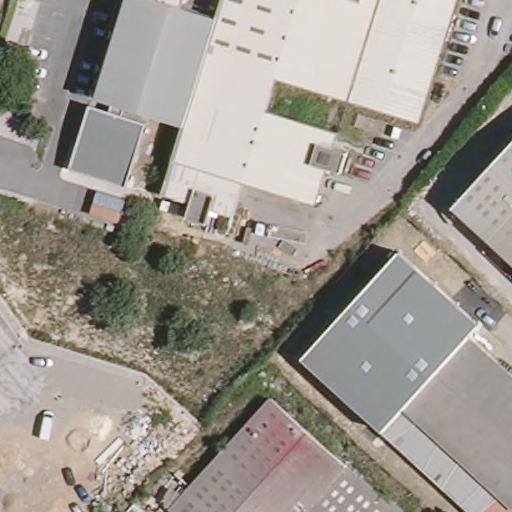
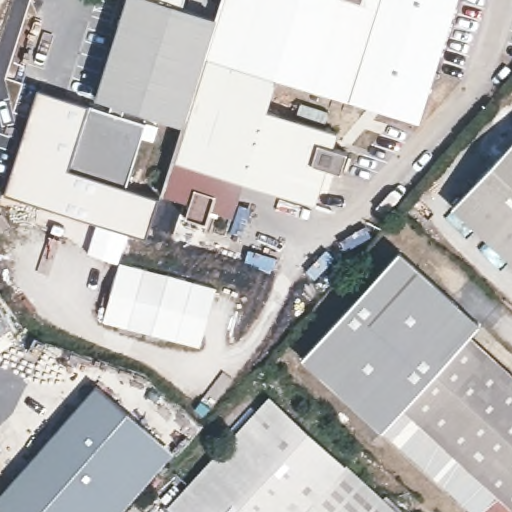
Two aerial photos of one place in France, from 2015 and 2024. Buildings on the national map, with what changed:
unchanged [(100,95),(130,0),(187,0),(224,11),(189,123),(100,95)]
unchanged [(189,123),(224,11),(227,0),(461,0),(425,115),(283,72),(273,105),(343,126),(339,142),(353,148),(347,167),(332,162),(320,199),(249,177),(238,211),(216,204),(210,220),(192,213),(197,198),(168,189),(189,123)]
new [(42,206),(4,195),(37,89),(88,106),(69,171),(127,188),(159,198),(145,238),(127,233),(117,263),(88,253),(97,223),(42,206)]
unchanged [(126,103),(123,118),(145,124),(127,188),(69,171),(88,106),(109,112),(113,99),(126,103)]
unchanged [(512,140),(512,272),(448,211),(512,140)]
unchanged [(382,425),(377,430),(301,359),(399,250),(478,323),(471,331),(382,425)]
new [(217,288),(201,347),(104,322),(120,262),(217,288)]
unchanged [(471,331),(512,369),(512,512),(476,512),(382,425),(471,331)]
new [(121,512),(0,512),(0,497),(97,382),(174,452),(121,512)]
unchanged [(184,512),(173,502),(274,392),(407,512),(184,512)]

